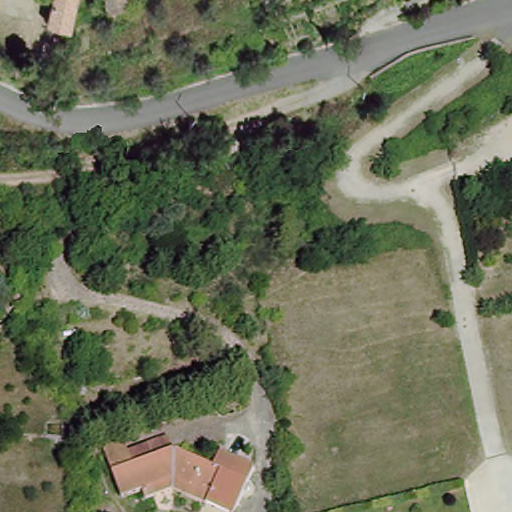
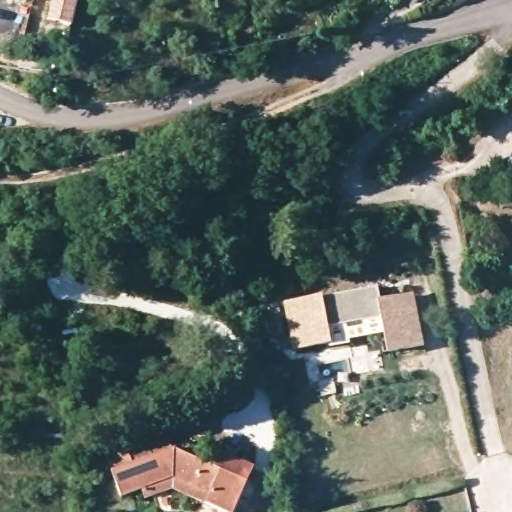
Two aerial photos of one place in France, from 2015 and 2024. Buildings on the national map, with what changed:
unchanged [(67,30),(46,26),(53,0),(73,0),(70,26),(67,30)]
unchanged [(102,0),(124,0),(128,12),(105,18),(102,0)]
new [(377,285),(380,300),(414,293),(424,347),(387,355),(380,317),(327,326),(331,344),(292,352),(284,303),(377,285)]
unchanged [(126,441),(135,464),(173,447),(214,468),(221,453),(257,468),(235,512),(229,512),(210,501),(206,506),(170,486),(168,495),(146,499),(143,491),(121,498),(107,449),(126,441)]

